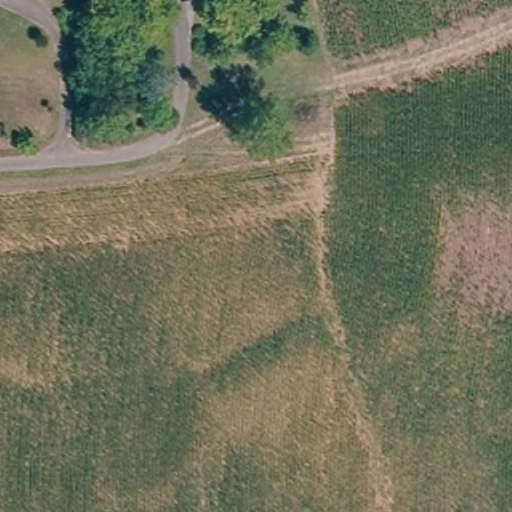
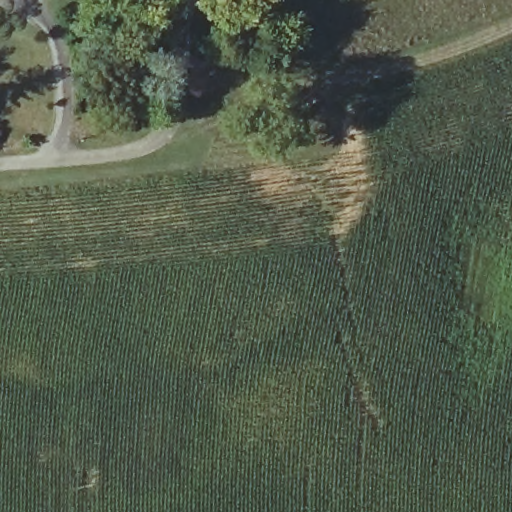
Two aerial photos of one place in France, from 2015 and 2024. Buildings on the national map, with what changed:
unchanged [(159,4),(163,42),(143,45),(139,5),(159,4)]

